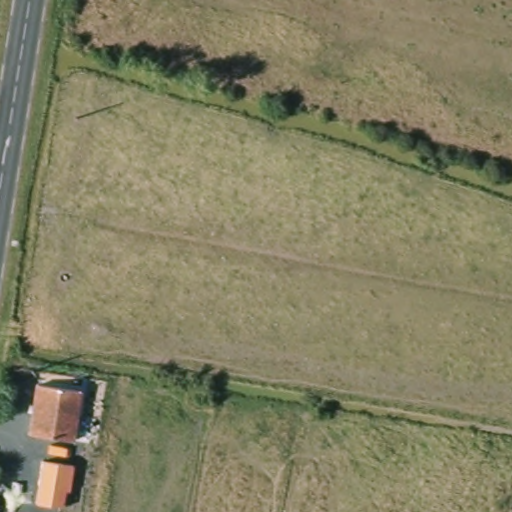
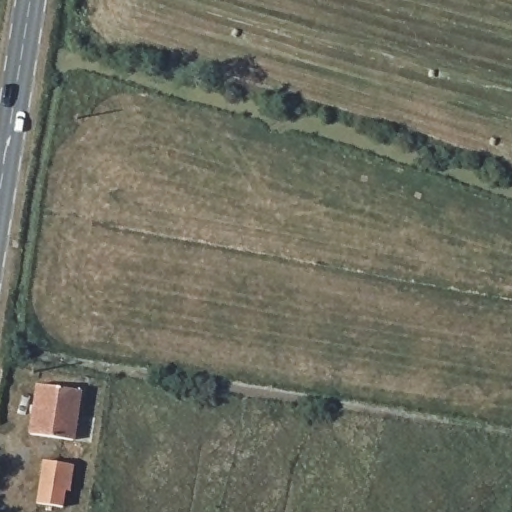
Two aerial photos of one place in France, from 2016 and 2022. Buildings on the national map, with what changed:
unchanged [(38,413),(42,389),(84,395),(81,415),(76,444),(35,439),(38,413)]
unchanged [(43,460),(72,464),(69,485),(65,484),(65,479),(40,476),(43,460)]

